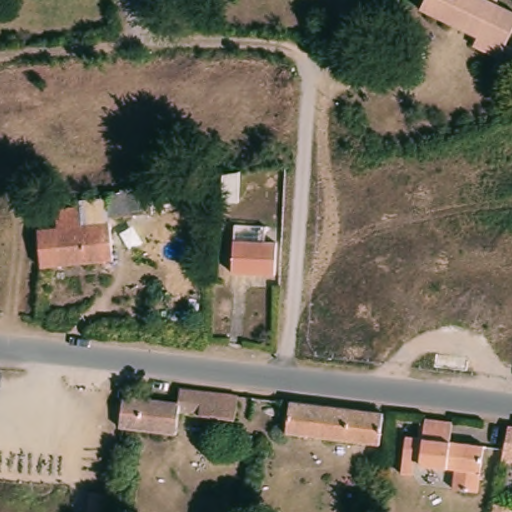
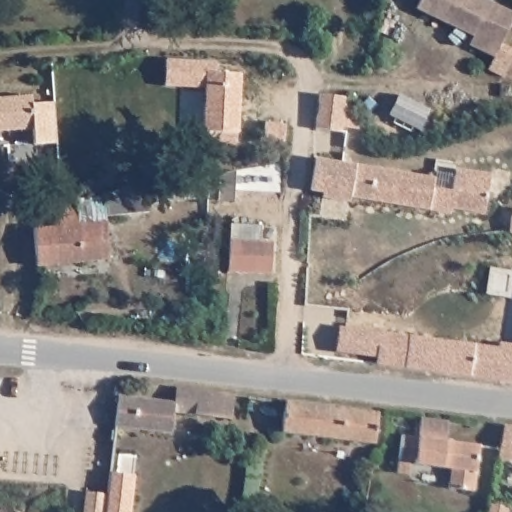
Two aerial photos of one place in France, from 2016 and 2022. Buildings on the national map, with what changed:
unchanged [(512,7),(512,17),(502,38),(512,43),(512,55),(505,71),(489,64),(495,51),(470,39),(474,31),(448,18),(416,3),(417,0),(498,0),(512,7)]
new [(32,104),(55,103),(58,143),(34,146),(33,131),(0,132),(0,97),(32,95),(32,104)]
new [(344,98),(344,103),(361,120),(360,130),(342,129),(341,133),(316,130),(320,96),(344,98)]
new [(483,213),(449,208),(448,213),(350,197),(349,201),(323,196),(323,193),(311,190),(317,158),(434,177),(432,188),(453,191),(455,169),(490,174),(483,213)]
unchanged [(236,171),(236,202),(219,202),(219,175),(236,171)]
unchanged [(145,185),(193,177),(209,176),(208,193),(147,204),(145,185)]
unchanged [(148,213),(106,217),(110,260),(37,266),(34,228),(59,226),(57,205),(76,203),(76,199),(104,197),(104,191),(145,185),(147,204),(148,213)]
new [(512,212),(512,235),(509,234),(512,212)]
unchanged [(267,269),(223,267),(226,219),(257,221),(257,236),(269,237),(267,269)]
new [(512,383),(376,365),(377,358),(336,353),(338,327),(499,347),(499,342),(512,344),(512,383)]
unchanged [(232,419),(176,412),(173,433),(116,427),(120,395),(174,401),(176,387),(235,394),(232,419)]
unchanged [(380,412),(376,444),(282,432),(286,401),(380,412)]
unchanged [(402,435),(419,437),(422,417),(449,421),(447,441),(481,445),(475,491),(449,488),(452,469),(415,464),(416,460),(411,459),(409,474),(397,472),(399,458),(402,435)]
unchanged [(505,420),(512,420),(512,455),(499,453),(505,420)]
new [(106,512),(112,473),(136,476),(132,512),(106,512)]
unchanged [(108,493),(105,512),(84,512),(86,491),(108,493)]
unchanged [(508,512),(488,512),(490,503),(509,507),(508,512)]

